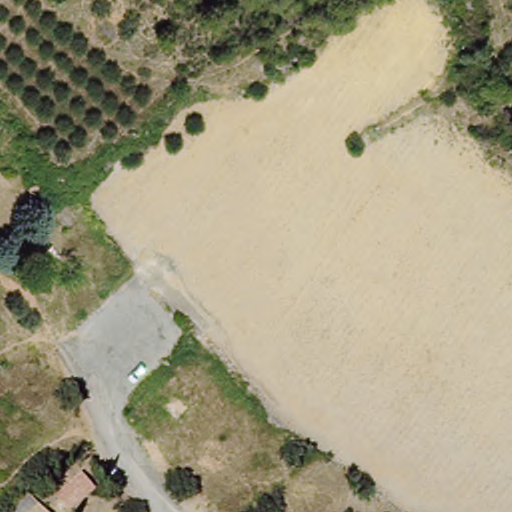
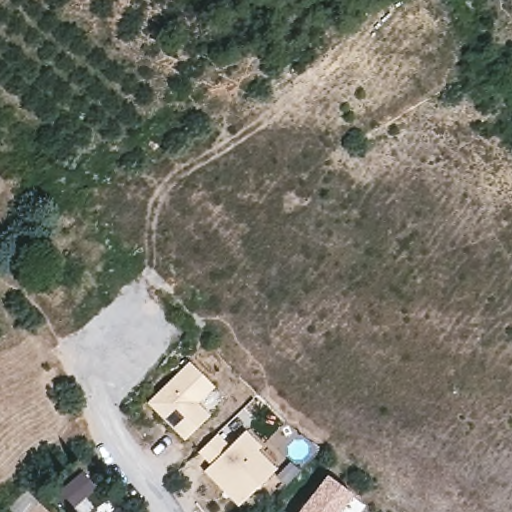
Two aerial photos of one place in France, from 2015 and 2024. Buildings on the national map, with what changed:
demolished [(60,249),(45,232),(66,207),(82,225),(60,249)]
new [(189,367),(213,392),(196,409),(208,421),(183,445),(147,408),(189,367)]
new [(215,439),(228,452),(244,436),(259,452),(255,456),(274,475),(237,511),(202,475),(209,469),(197,456),(215,439)]
unchanged [(95,496),(73,512),(68,512),(56,493),(81,472),(95,496)]
new [(350,500),(341,512),(303,512),(326,481),(350,500)]
unchanged [(27,492),(47,512),(12,512),(10,509),(27,492)]

